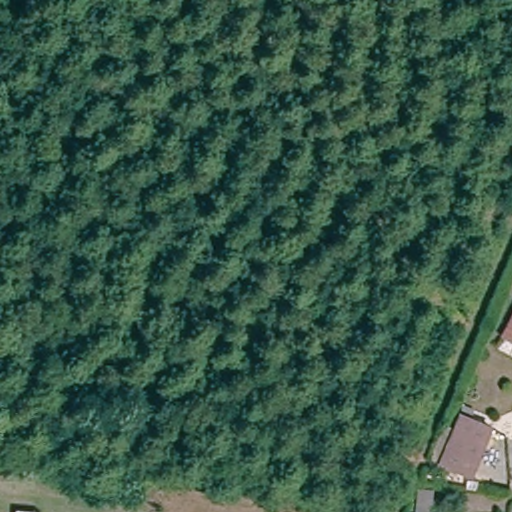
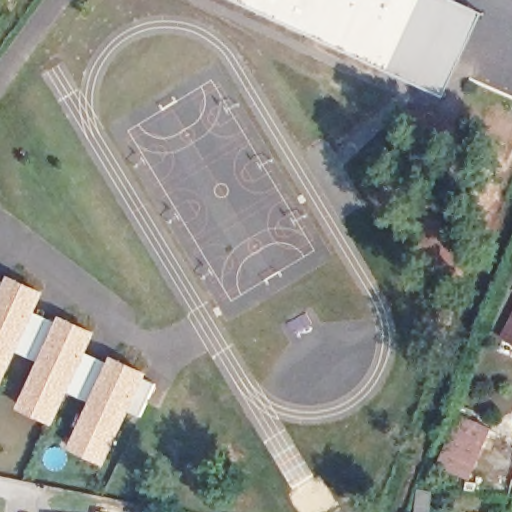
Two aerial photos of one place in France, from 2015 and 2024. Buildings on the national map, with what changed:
new [(233,0),(425,0),(391,71),(233,0)]
new [(391,71),(425,0),(456,0),(483,12),(445,96),(391,71)]
new [(0,305),(12,279),(42,293),(7,369),(1,381),(0,380),(0,305)]
new [(0,305),(0,280),(10,284),(0,305)]
new [(33,312),(61,324),(43,363),(37,360),(15,351),(22,337),(33,312)]
unchanged [(502,335),(512,317),(512,340),(502,335)]
new [(22,407),(27,396),(64,319),(94,333),(57,410),(52,422),(22,407)]
new [(85,352),(112,365),(95,404),(88,401),(67,391),(73,377),(85,352)]
new [(74,448),(80,436),(115,359),(145,374),(142,378),(157,384),(142,417),(127,410),(109,450),(104,461),(74,448)]
new [(466,406),(473,409),(469,420),(461,417),(466,406)]
unchanged [(437,471),(457,423),(464,426),(493,439),(475,488),(437,471)]
unchanged [(418,497),(437,499),(436,512),(418,512),(413,508),(418,497)]
new [(97,509),(112,511),(111,512),(97,512),(97,509)]

